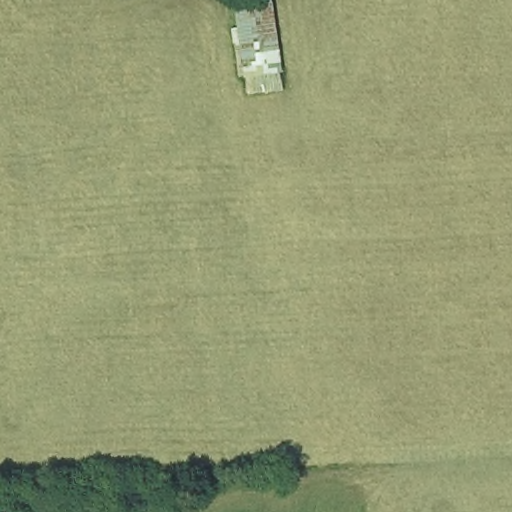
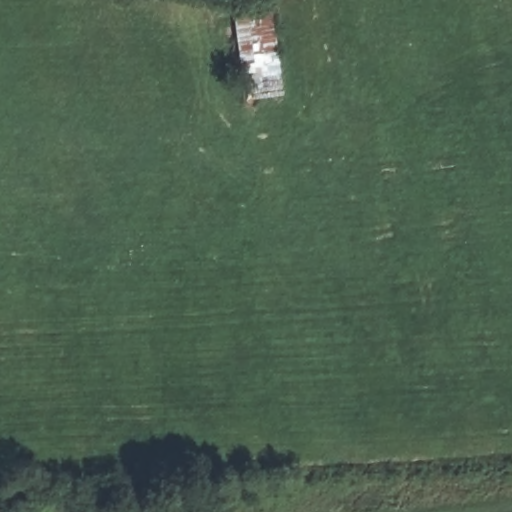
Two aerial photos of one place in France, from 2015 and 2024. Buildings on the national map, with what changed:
unchanged [(237,0),(274,0),(287,88),(249,94),(237,0)]

